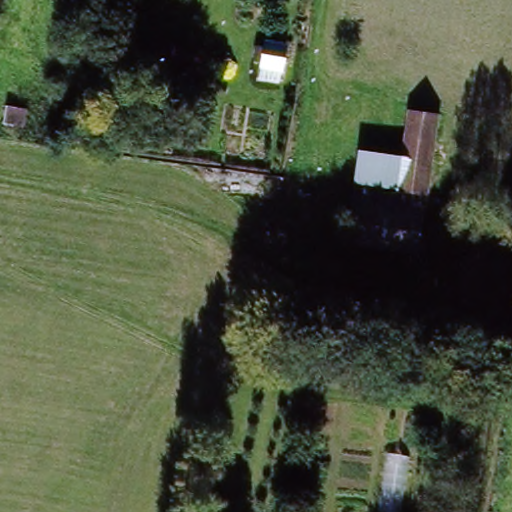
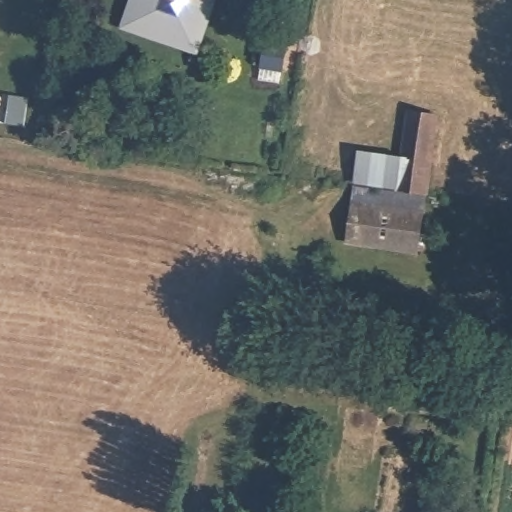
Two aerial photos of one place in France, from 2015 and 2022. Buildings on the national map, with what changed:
new [(198,50),(198,51),(182,46),(182,44),(154,34),(153,36),(137,30),(138,29),(135,28),(145,0),(219,0),(203,51),(198,50)]
unchanged [(405,124),(407,110),(440,112),(439,116),(462,121),(452,196),(425,194),(420,254),(347,244),(354,186),(363,123),(405,124)]
unchanged [(405,460),(397,512),(375,512),(382,455),(405,460)]

